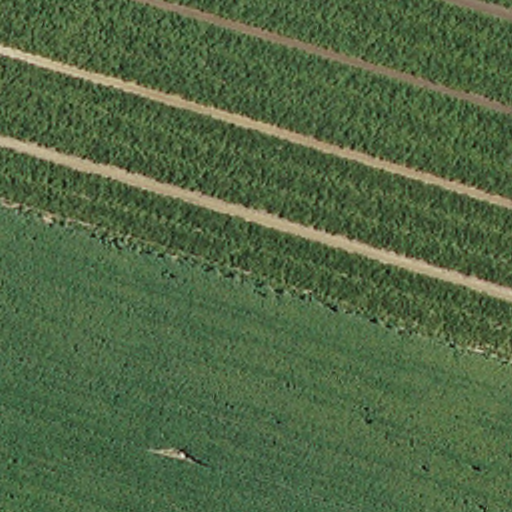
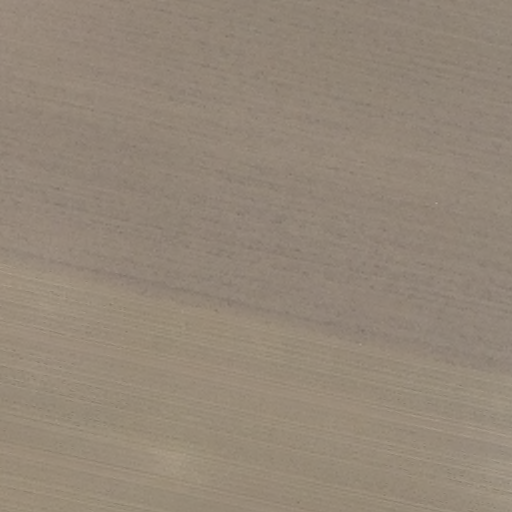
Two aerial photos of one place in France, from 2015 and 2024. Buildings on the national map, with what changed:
[]

